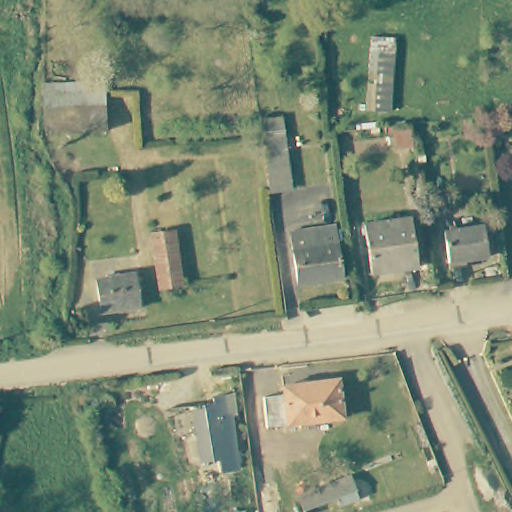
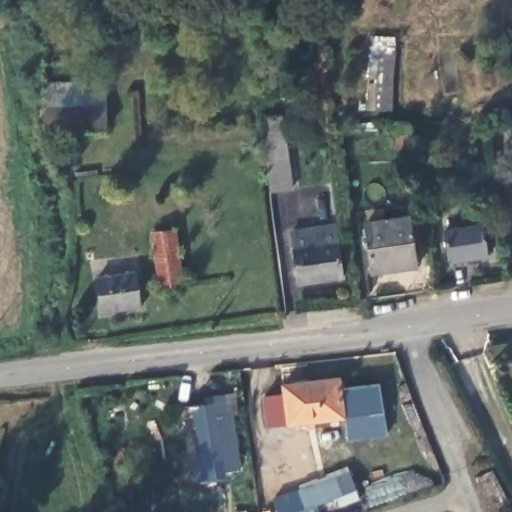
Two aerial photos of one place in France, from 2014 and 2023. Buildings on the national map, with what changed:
unchanged [(48,109),(46,83),(104,80),(105,106),(48,109)]
unchanged [(107,131),(49,134),(48,109),(105,106),(107,131)]
unchanged [(260,120),(282,118),(292,189),(270,192),(260,120)]
unchanged [(399,150),(395,128),(413,126),(416,147),(399,150)]
unchanged [(410,219),(416,269),(372,274),(365,224),(410,219)]
unchanged [(335,227),(341,279),(298,285),(291,233),(335,227)]
unchanged [(488,227),(493,259),(454,264),(450,232),(488,227)]
unchanged [(165,288),(159,235),(180,233),(187,285),(165,288)]
unchanged [(136,274),(141,308),(102,314),(96,280),(136,274)]
unchanged [(288,399),(287,390),(344,384),(347,424),(270,432),(267,402),(288,399)]
new [(386,438),(348,442),(347,424),(344,388),(380,384),(386,438)]
unchanged [(203,465),(192,413),(212,410),(212,402),(222,401),(225,424),(217,424),(220,444),(231,444),(234,461),(203,465)]
unchanged [(349,476),(355,491),(303,511),(297,496),(349,476)]
new [(272,503),(297,496),(303,511),(312,507),(314,512),(276,512),(272,503)]

